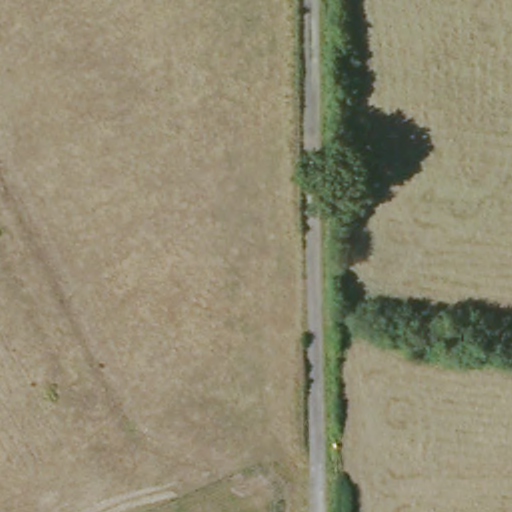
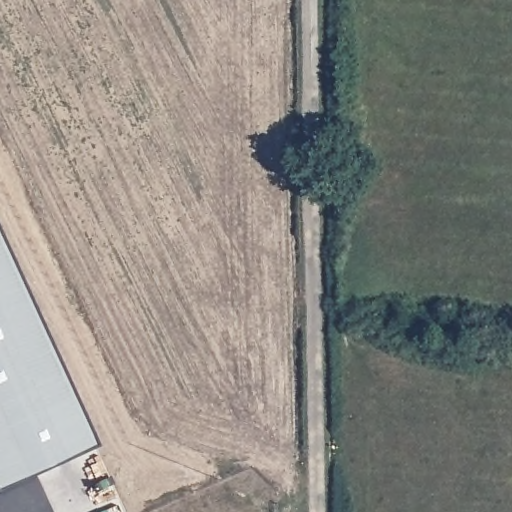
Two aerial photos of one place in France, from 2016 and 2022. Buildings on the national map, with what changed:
new [(0,484),(0,230),(98,446),(2,488),(0,484)]

